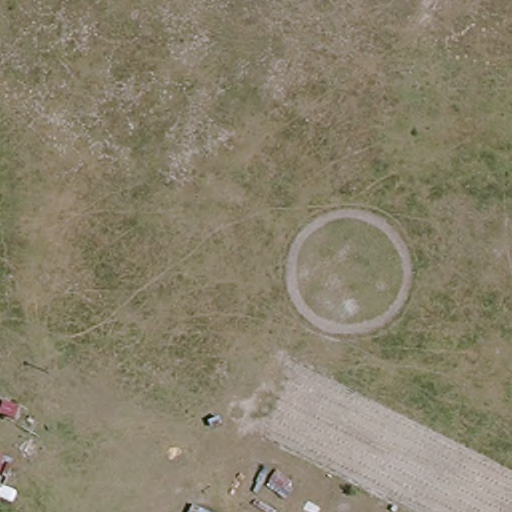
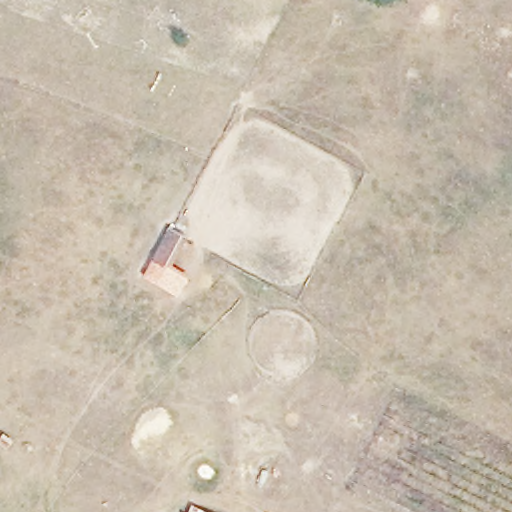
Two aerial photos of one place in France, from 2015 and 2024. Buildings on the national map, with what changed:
new [(181,275),(173,291),(145,276),(170,229),(189,240),(171,273),(181,275)]
unchanged [(195,504),(211,512),(191,512),(195,504)]

